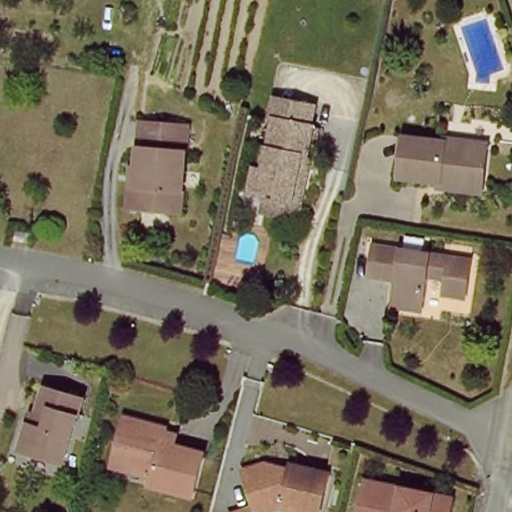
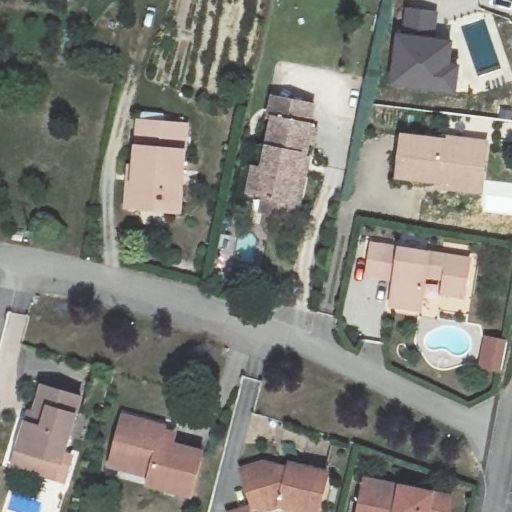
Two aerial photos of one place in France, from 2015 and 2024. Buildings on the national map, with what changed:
new [(405,6),(438,11),(435,36),(454,40),(452,62),(462,66),(458,93),(389,85),(397,30),(401,31),(405,6)]
unchanged [(316,103),(308,133),(274,126),(276,117),(261,114),(266,92),(316,103)]
new [(500,106),(512,107),(512,121),(512,143),(500,141),(502,119),(498,119),(500,106)]
unchanged [(138,122),(185,127),(174,215),(126,209),(138,122)]
unchanged [(298,207),(285,204),(246,196),(250,174),(257,174),(262,152),(270,152),(274,126),(308,133),(303,163),(307,164),(298,207)]
unchanged [(408,135),(440,140),(442,136),(488,141),(482,188),(436,180),(433,186),(397,178),(408,135)]
unchanged [(472,261),(469,294),(447,290),(447,275),(429,272),(425,306),(392,301),(397,261),(389,261),(385,276),(371,273),(374,245),(472,261)]
unchanged [(22,428),(31,429),(41,389),(83,399),(65,467),(17,453),(22,428)]
unchanged [(110,458),(117,433),(121,419),(137,423),(165,431),(164,438),(180,444),(179,449),(205,458),(194,501),(152,488),(154,482),(128,475),(107,469),(110,458)]
unchanged [(285,471),(287,472),(289,473),(292,470),(292,467),(329,473),(321,512),(309,512),(284,507),(263,512),(241,512),(255,508),(249,490),(241,468),(252,465),(258,463),(282,468),(285,471)]
unchanged [(454,500),(452,512),(361,512),(365,481),(454,500)]

